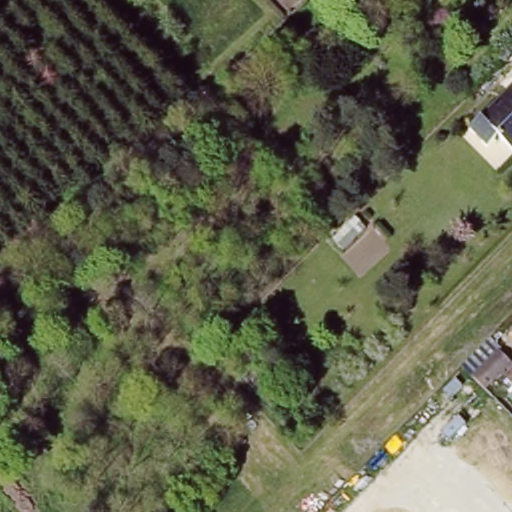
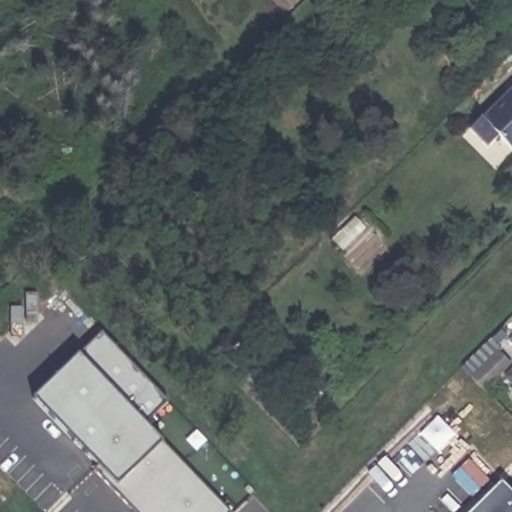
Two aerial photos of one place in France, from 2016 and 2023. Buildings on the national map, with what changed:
unchanged [(488,151),(469,132),(512,90),(512,153),(499,139),(488,151)]
new [(107,330),(172,400),(149,422),(84,352),(107,330)]
unchanged [(475,376),(500,350),(510,360),(485,387),(475,376)]
new [(84,352),(149,422),(167,440),(116,487),(33,399),(84,352)]
unchanged [(512,369),(512,383),(505,376),(512,369)]
new [(116,487),(167,440),(232,510),(229,512),(139,512),(138,511),(116,487)]
new [(512,488),(512,512),(456,512),(496,472),(512,488)]

